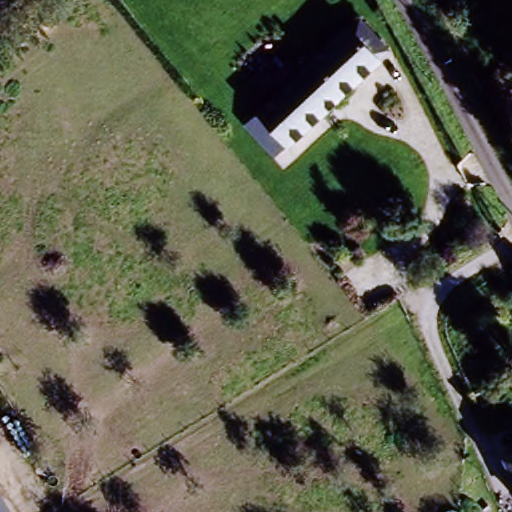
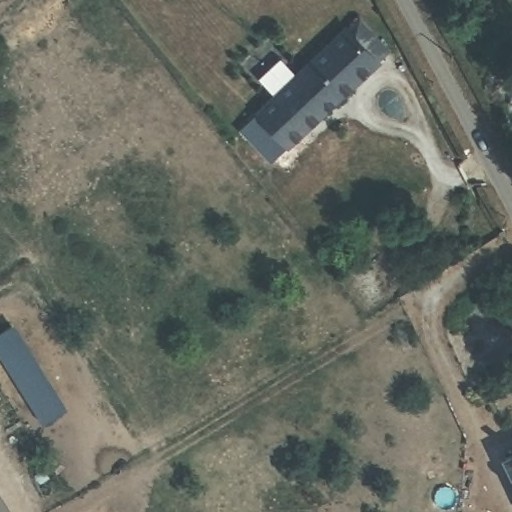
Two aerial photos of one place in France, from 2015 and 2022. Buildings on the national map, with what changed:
unchanged [(252,125),(351,29),(362,19),(388,47),(377,58),(278,151),(252,125)]
new [(43,427),(0,357),(0,331),(14,322),(69,408),(43,427)]
unchanged [(503,463),(512,456),(512,476),(503,463)]
unchanged [(0,491),(13,512),(0,512),(0,491)]

